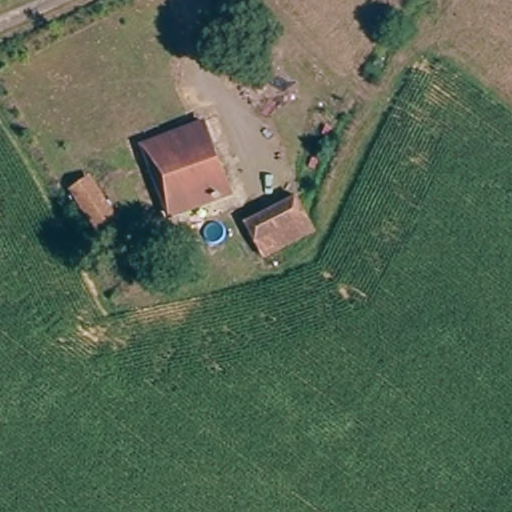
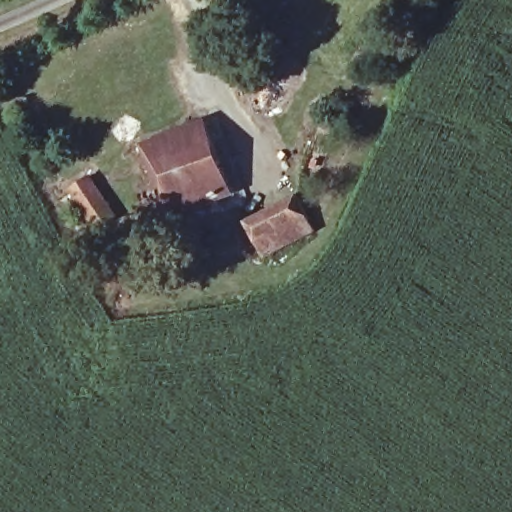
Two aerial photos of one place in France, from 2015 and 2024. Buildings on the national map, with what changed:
unchanged [(199,123),(221,192),(169,208),(148,138),(199,123)]
unchanged [(84,176),(110,210),(91,225),(66,190),(84,176)]
unchanged [(294,196),(308,229),(262,248),(247,215),(294,196)]
unchanged [(203,227),(208,245),(184,252),(179,235),(203,227)]

